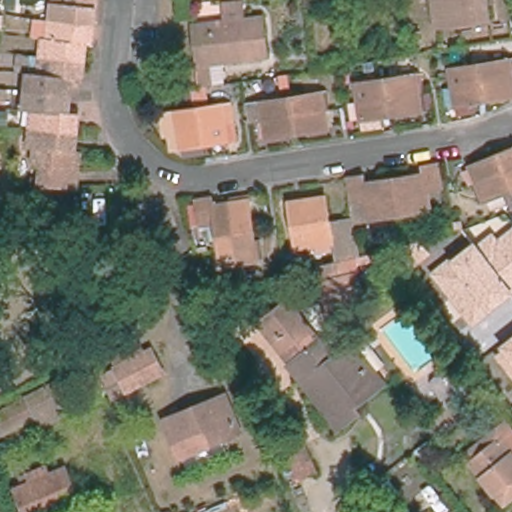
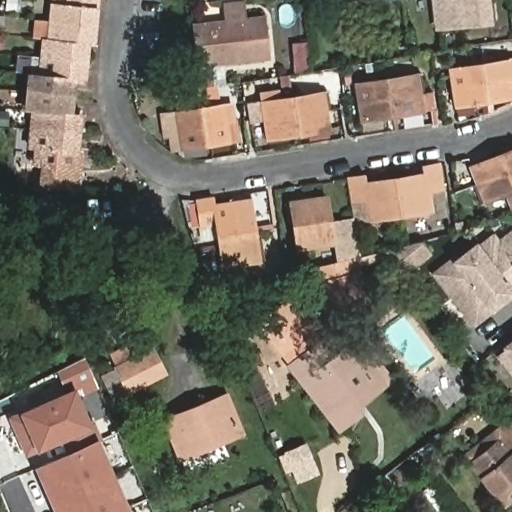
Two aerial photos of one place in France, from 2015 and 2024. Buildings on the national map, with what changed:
unchanged [(33,110),(25,110),(26,98),(26,93),(29,74),(40,75),(42,58),(44,40),(49,39),(51,22),(53,4),(64,4),(64,0),(96,0),(95,7),(94,16),(94,25),(91,44),(85,44),(84,61),(83,70),(81,79),(81,83),(73,83),(70,98),(70,101),(69,109),(79,110),(79,114),(78,124),(75,153),(35,149),(29,149),(33,110)]
unchanged [(437,28),(434,0),(486,0),(488,21),(437,28)]
unchanged [(200,26),(265,19),(270,58),(211,64),(214,86),(208,86),(200,26)]
unchanged [(481,109),(458,112),(457,107),(456,106),(450,71),(464,69),(512,62),(512,98),(484,103),(480,103),(481,109)]
unchanged [(383,123),(362,126),(356,85),(372,83),(422,75),(424,89),(427,110),(391,116),(382,118),(383,123)]
unchanged [(270,143),(269,138),(268,138),(265,125),(260,126),(257,104),(292,99),(329,93),(332,114),(325,115),(328,128),(327,128),(329,134),(307,137),(307,132),(298,134),(290,134),(291,140),(270,143)]
unchanged [(204,145),(182,149),(182,143),(173,144),(170,130),(165,131),(162,112),(175,109),(190,107),(223,101),(231,100),(233,113),(229,113),(233,135),(213,138),(203,140),(204,145)]
unchanged [(477,182),(469,164),(489,155),(492,160),(502,156),(506,154),(504,150),(512,147),(512,192),(479,205),(471,184),(477,182)]
unchanged [(75,153),(80,154),(76,189),(40,186),(42,165),(34,165),(35,149),(75,153)]
unchanged [(423,176),(422,166),(440,164),(444,192),(428,194),(430,212),(399,216),(393,180),(423,176)]
unchanged [(399,216),(369,220),(367,202),(351,205),(347,178),(364,175),(366,184),(393,180),(399,216)]
unchanged [(361,256),(394,249),(396,263),(359,269),(368,305),(324,314),(312,247),(298,249),(295,231),(294,226),(289,227),(285,204),(326,198),(328,213),(329,223),(354,220),(361,256)]
unchanged [(224,273),(221,258),(217,229),(202,232),(198,207),(213,204),(214,211),(227,209),(225,204),(249,200),(254,237),(259,267),(224,273)]
unchanged [(473,328),(431,273),(449,259),(474,240),(478,244),(492,232),(497,239),(512,227),(512,296),(492,309),(494,311),(473,328)]
unchanged [(337,373),(354,359),(379,389),(351,412),(362,424),(347,437),(269,340),(294,320),(337,373)]
new [(504,351),(501,346),(512,337),(512,377),(495,355),(504,351)]
unchanged [(128,393),(116,369),(151,351),(163,374),(128,393)]
demolished [(43,427),(37,417),(0,437),(0,416),(54,386),(69,414),(43,427)]
new [(54,498),(53,496),(45,481),(38,464),(71,448),(64,432),(27,448),(11,414),(72,386),(87,419),(90,417),(99,436),(94,438),(112,476),(126,508),(119,511),(119,512),(60,512),(54,498)]
unchanged [(224,402),(235,432),(183,454),(170,424),(224,402)]
unchanged [(504,501),(492,484),(466,452),(506,420),(512,428),(512,495),(504,501)]
unchanged [(305,447),(317,476),(291,486),(279,458),(305,447)]
demolished [(15,490),(33,483),(29,476),(47,469),(49,476),(65,469),(79,503),(57,512),(25,512),(15,490)]
unchanged [(369,507),(362,512),(340,512),(360,496),(369,507)]

